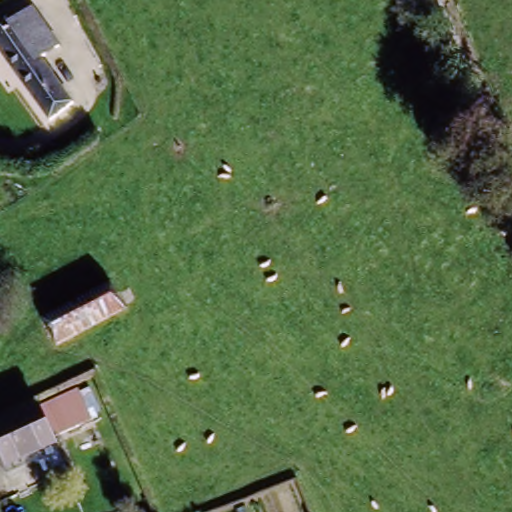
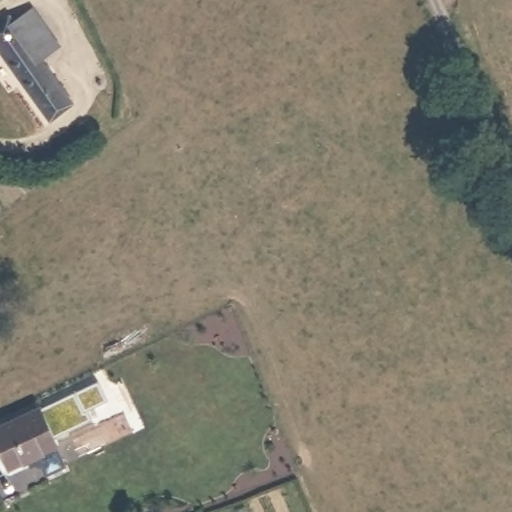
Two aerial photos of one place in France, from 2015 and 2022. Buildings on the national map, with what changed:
unchanged [(52,118),(0,46),(0,30),(15,18),(19,25),(37,13),(63,53),(48,64),(75,101),(52,118)]
unchanged [(122,310),(64,344),(50,320),(107,285),(122,310)]
unchanged [(51,407),(88,388),(100,411),(62,431),(51,407)]
unchanged [(62,431),(67,440),(22,464),(7,430),(51,407),(62,431)]

